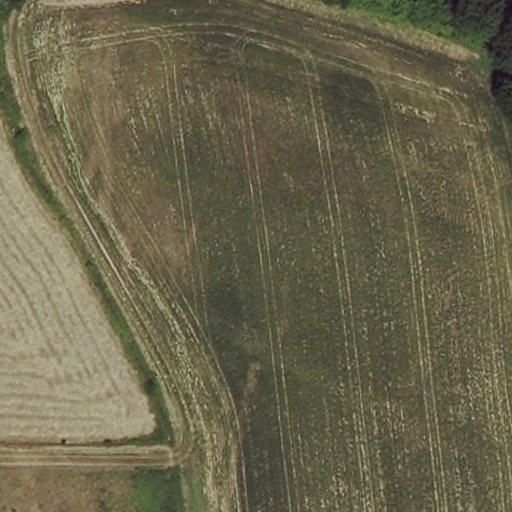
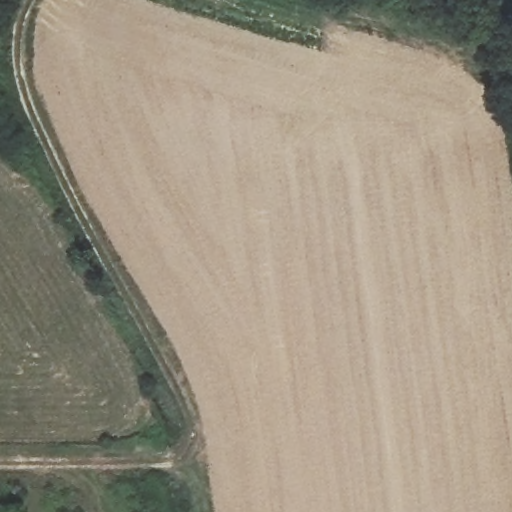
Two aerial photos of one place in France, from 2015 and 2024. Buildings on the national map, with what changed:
[]

